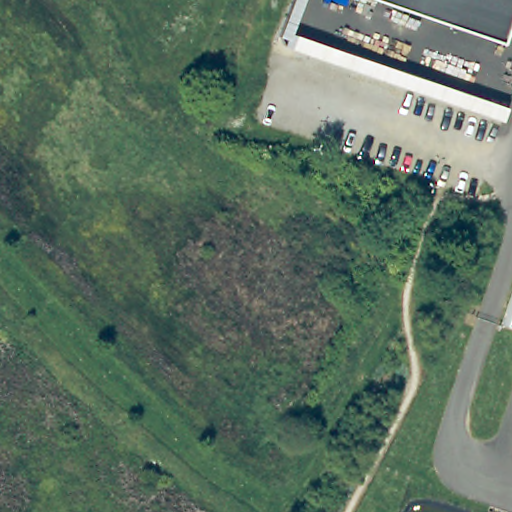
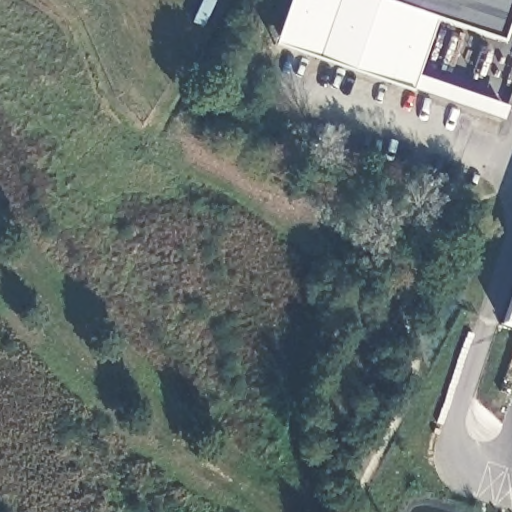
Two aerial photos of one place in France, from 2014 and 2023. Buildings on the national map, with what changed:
new [(289,0),(375,0),(436,21),(417,76),(509,108),(503,121),(412,91),(274,46),(289,0)]
unchanged [(375,0),(512,0),(512,6),(500,43),(375,0)]
unchanged [(512,284),(512,330),(498,325),(512,284)]

